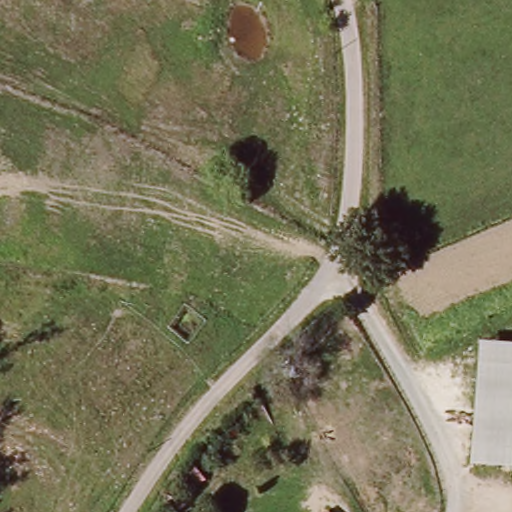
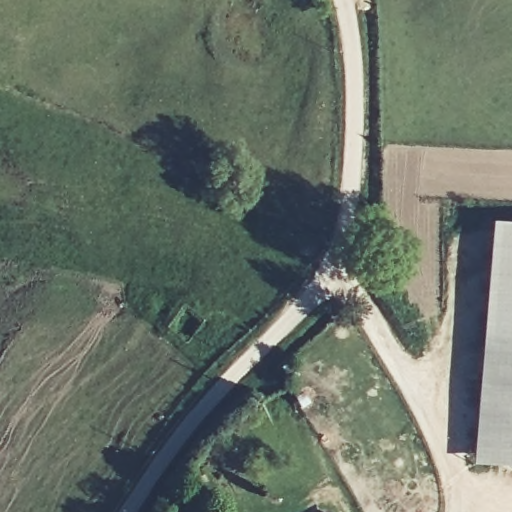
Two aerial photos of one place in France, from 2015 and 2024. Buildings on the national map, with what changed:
new [(490,223),(512,225),(512,344),(479,341),(490,223)]
unchanged [(479,341),(512,344),(512,467),(470,464),(479,341)]

